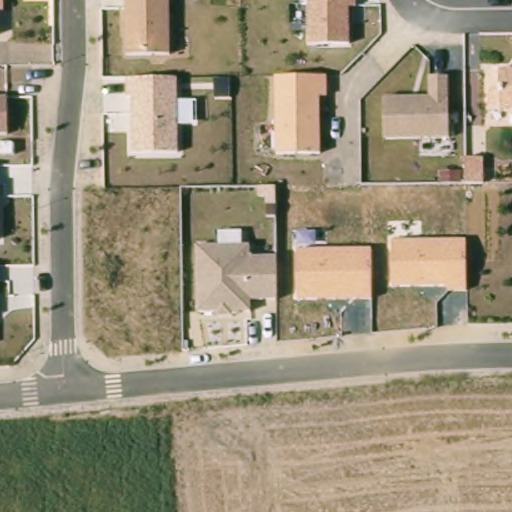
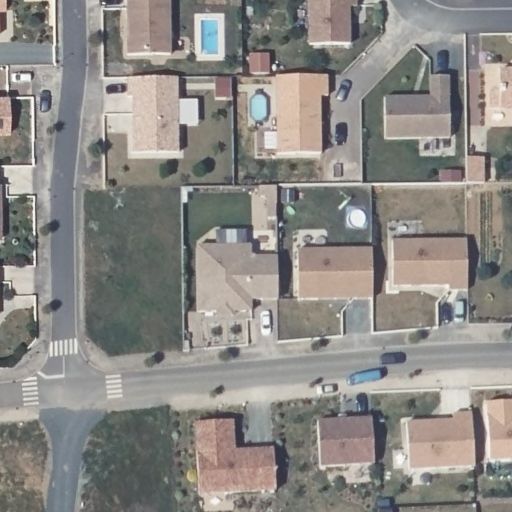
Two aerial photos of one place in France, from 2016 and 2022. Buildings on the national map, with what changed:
unchanged [(4,11),(0,12),(0,0),(3,0),(4,11)]
unchanged [(127,0),(169,0),(169,54),(128,54),(127,0)]
unchanged [(309,0),(357,0),(357,7),(348,8),(349,44),(309,45),(309,0)]
unchanged [(491,107),(489,78),(498,77),(498,68),(512,68),(512,107),(491,107)]
unchanged [(328,100),(320,100),(320,156),(275,157),(275,76),(328,77),(328,100)]
unchanged [(132,98),(126,99),(127,78),(176,77),(178,154),(133,155),(132,98)]
unchanged [(427,79),(446,79),(447,136),(383,138),(382,98),(427,98),(427,79)]
unchanged [(5,136),(0,136),(0,99),(6,99),(5,136)]
unchanged [(0,239),(0,222),(1,238),(0,239)]
unchanged [(466,239),(468,293),(449,293),(448,287),(392,288),(391,240),(466,239)]
unchanged [(197,248),(251,245),(251,257),(275,258),(277,300),(250,301),(250,311),(234,313),(233,317),(217,318),(216,312),(198,313),(197,248)]
unchanged [(372,301),(296,301),(297,246),(371,246),(372,301)]
new [(490,462),(486,402),(512,400),(512,461),(490,462)]
new [(424,424),(424,427),(437,426),(437,423),(453,423),(452,416),(471,415),(474,466),(409,470),(406,425),(424,424)]
new [(371,417),(374,464),(320,467),(317,420),(371,417)]
new [(233,420),(235,457),(273,455),(275,490),(199,494),(195,423),(233,420)]

